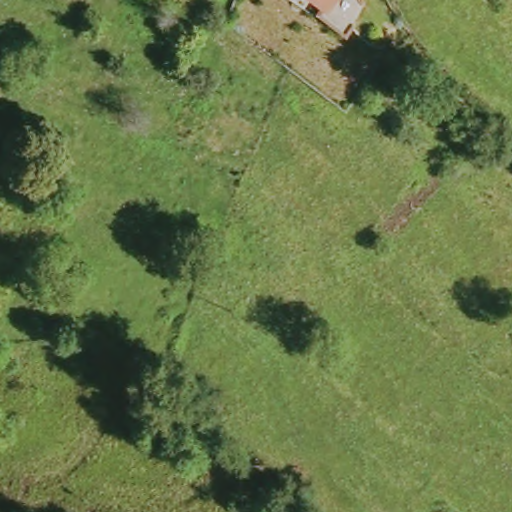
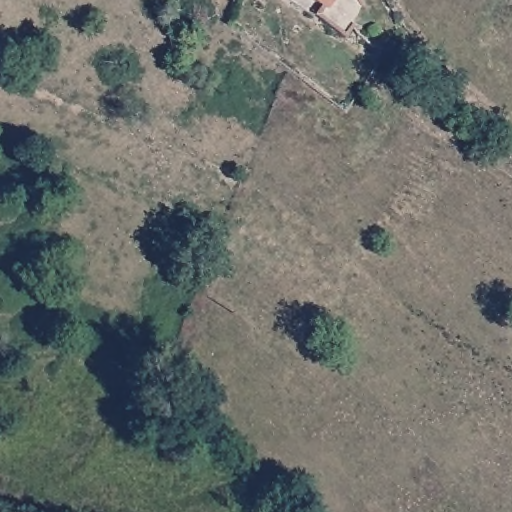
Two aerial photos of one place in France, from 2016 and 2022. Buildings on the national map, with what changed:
unchanged [(319,0),(343,0),(333,11),(319,0)]

